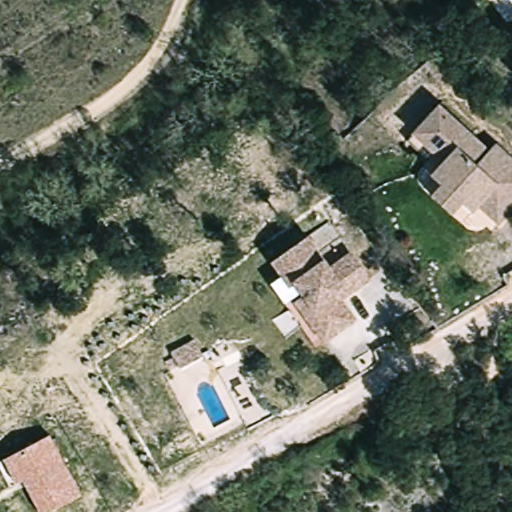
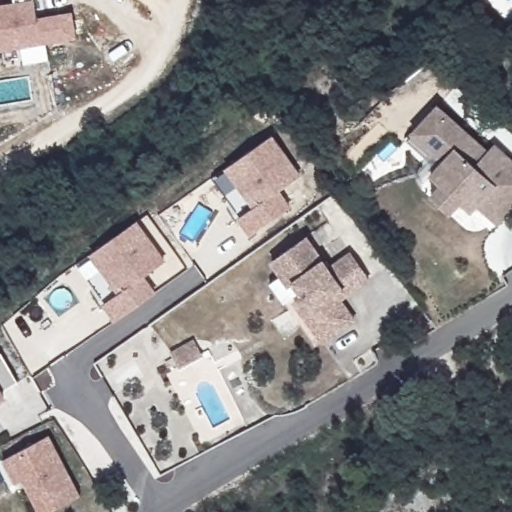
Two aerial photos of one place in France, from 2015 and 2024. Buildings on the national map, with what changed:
new [(34,0),(37,18),(72,12),(77,37),(0,51),(0,5),(14,2),(14,0),(34,0)]
unchanged [(438,200),(449,187),(437,177),(447,165),(413,135),(402,125),(427,97),(438,107),(492,152),(497,147),(512,158),(512,216),(507,222),(484,204),(477,211),(467,203),(457,214),(438,200)]
new [(249,234),(237,217),(253,206),(227,166),(272,137),(299,177),(277,192),(287,209),(249,234)]
new [(113,324),(103,306),(117,293),(90,255),(135,224),(163,263),(142,277),(155,295),(113,324)]
unchanged [(275,283),(286,275),(276,261),(309,238),(328,266),(353,248),(375,277),(347,297),(360,316),(320,345),(275,283)]
unchanged [(180,366),(170,351),(193,339),(202,356),(180,366)]
new [(3,392),(7,397),(0,402),(0,353),(2,352),(18,382),(3,392)]
unchanged [(40,512),(22,479),(17,484),(2,458),(49,435),(80,493),(40,512)]

